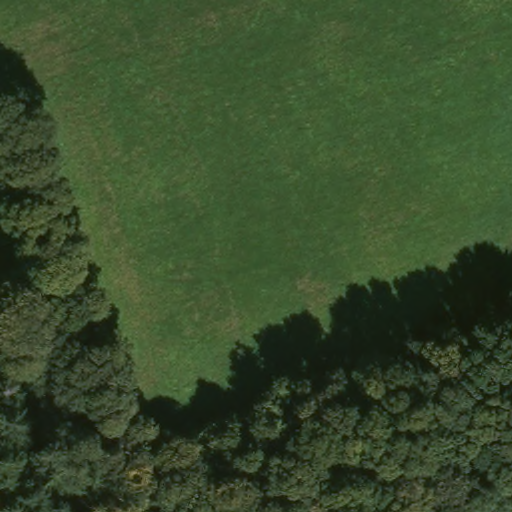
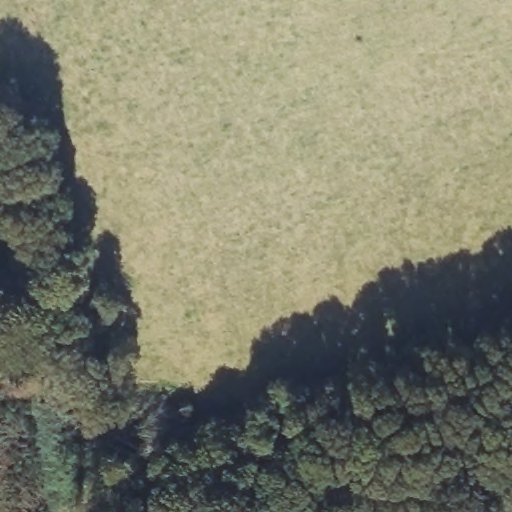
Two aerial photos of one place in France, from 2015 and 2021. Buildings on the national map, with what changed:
[]

